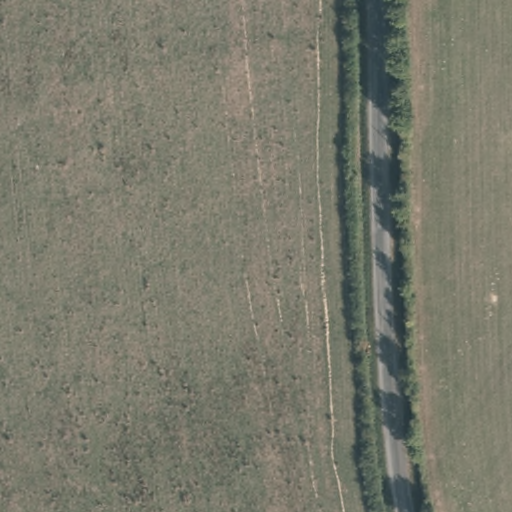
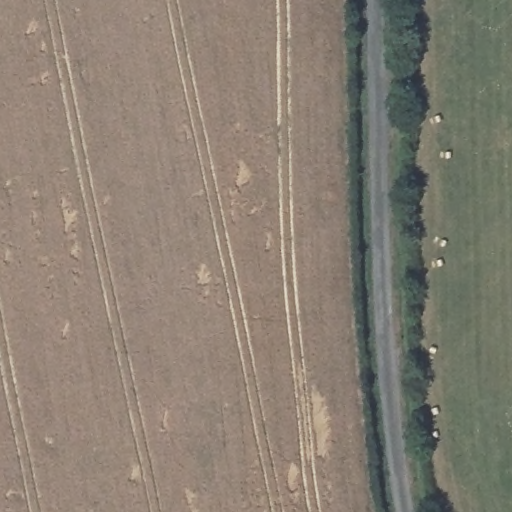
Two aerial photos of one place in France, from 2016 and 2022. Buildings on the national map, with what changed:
[]

